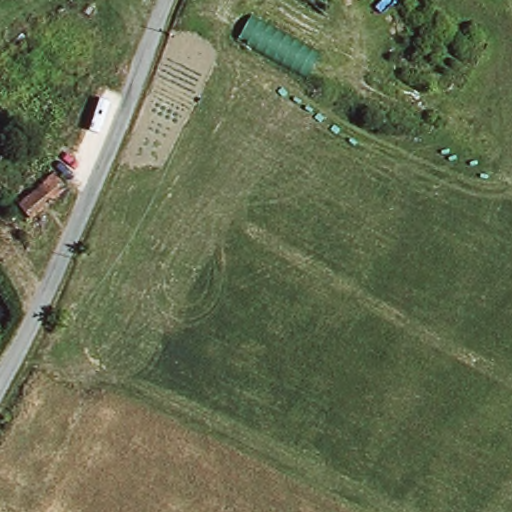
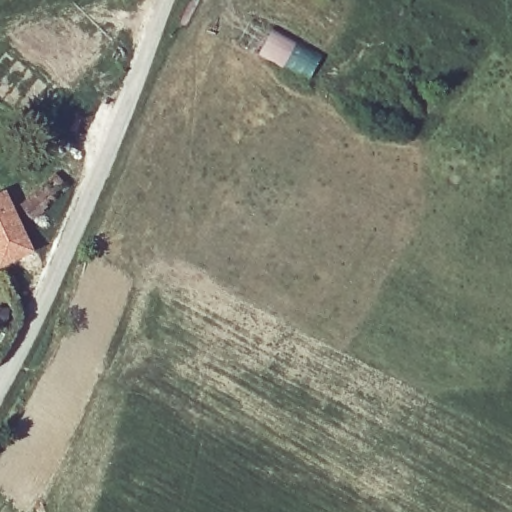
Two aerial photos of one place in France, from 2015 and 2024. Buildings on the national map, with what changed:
unchanged [(15,209),(56,177),(69,194),(33,222),(15,209)]
new [(5,189),(34,252),(0,268),(0,191),(5,189)]

